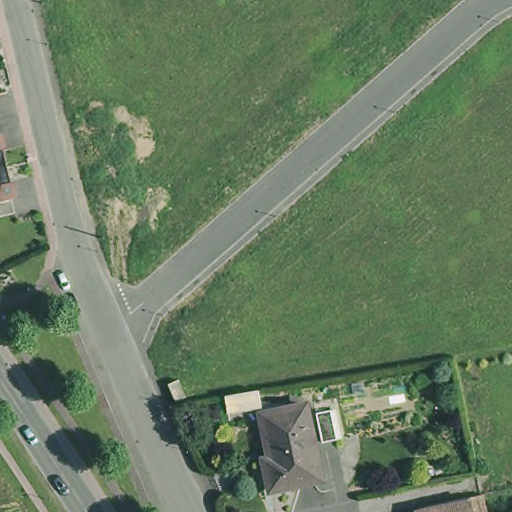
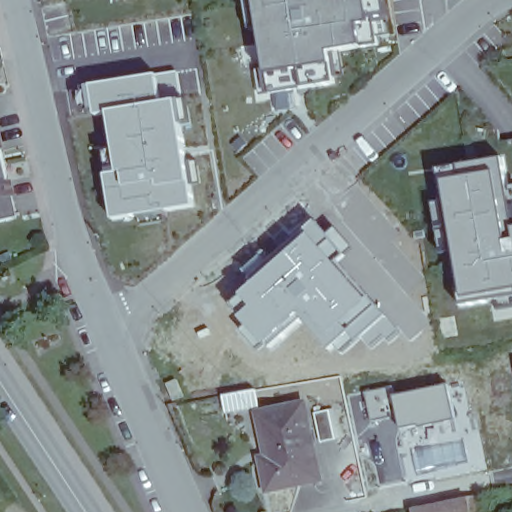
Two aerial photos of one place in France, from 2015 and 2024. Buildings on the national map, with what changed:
new [(75,0),(114,0),(76,5),(75,0)]
new [(351,0),(356,28),(344,30),(347,51),(317,57),(323,88),(262,96),(260,79),(254,79),(243,0),(312,0),(313,6),(351,0)]
new [(177,74),(182,103),(170,104),(185,211),(101,224),(95,180),(98,180),(95,157),(105,155),(98,118),(86,121),(85,114),(79,115),(75,91),(177,74)]
unchanged [(2,132),(17,197),(10,199),(15,217),(0,221),(0,133),(2,132)]
new [(512,235),(512,302),(453,313),(430,175),(496,164),(510,235),(512,235)]
new [(403,306),(411,299),(430,323),(408,339),(401,331),(388,343),(383,338),(370,348),(362,338),(342,354),(335,346),(330,351),(302,320),(265,351),(242,331),(246,327),(229,305),(308,234),(305,230),(317,219),(328,233),(336,227),(353,247),(337,261),(357,279),(388,315),(392,319),(405,309),(403,306)]
new [(456,420),(400,431),(395,416),(365,422),(362,413),(365,413),(360,393),(388,387),(390,396),(448,384),(456,420)]
unchanged [(233,414),(230,397),(261,392),(265,408),(233,414)]
unchanged [(270,461),(276,460),(268,416),(311,408),(326,481),(276,492),(270,461)]
unchanged [(412,512),(485,497),(487,512),(413,512),(412,512)]

